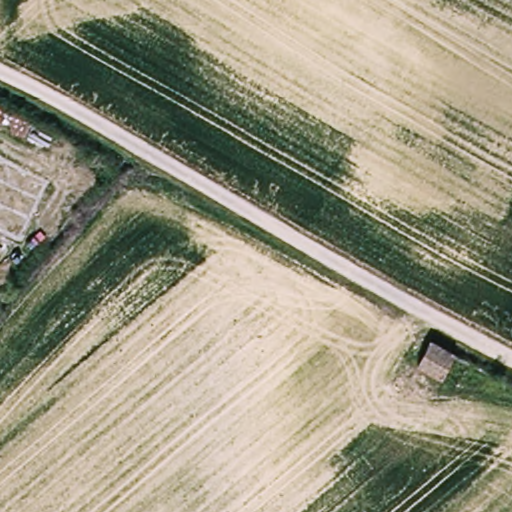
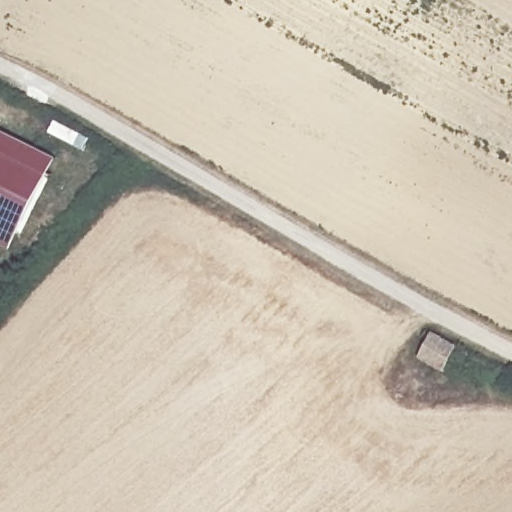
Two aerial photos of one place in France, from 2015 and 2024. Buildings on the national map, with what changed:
new [(10,254),(0,248),(0,133),(57,161),(10,254)]
unchanged [(421,336),(461,355),(449,380),(410,359),(421,336)]

